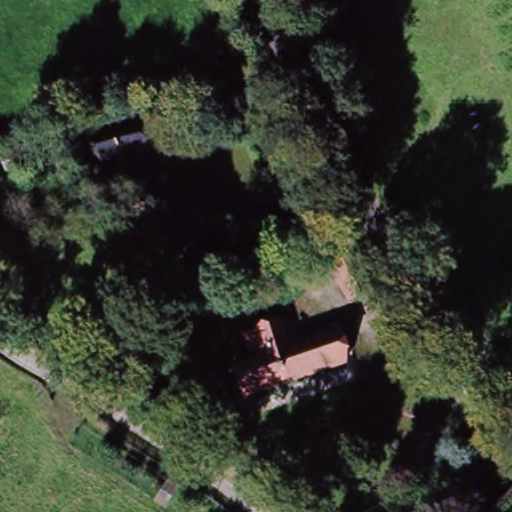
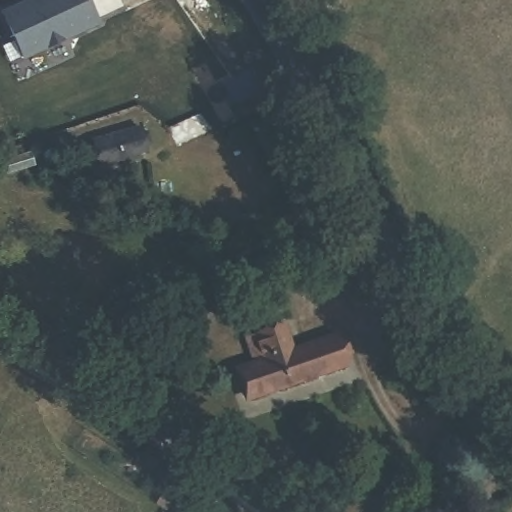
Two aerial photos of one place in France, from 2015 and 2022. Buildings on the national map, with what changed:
new [(29,0),(91,0),(102,23),(25,58),(5,12),(29,0)]
unchanged [(108,162),(104,151),(96,153),(91,141),(145,123),(153,146),(108,162)]
unchanged [(356,298),(342,271),(358,262),(373,290),(356,298)]
unchanged [(300,350),(335,335),(346,361),(263,397),(252,370),(277,358),(267,337),(290,327),(300,350)]

